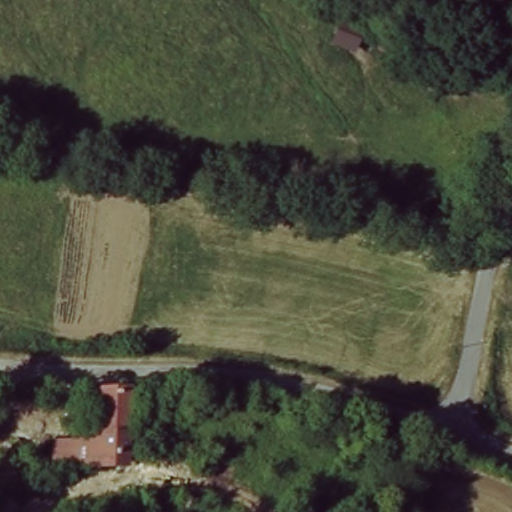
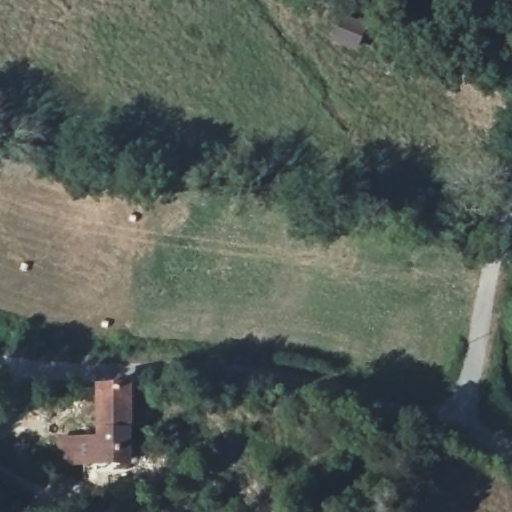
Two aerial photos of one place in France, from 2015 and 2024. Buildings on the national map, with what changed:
unchanged [(135,390),(130,445),(130,451),(129,463),(62,456),(64,435),(101,440),(105,387),(135,390)]

